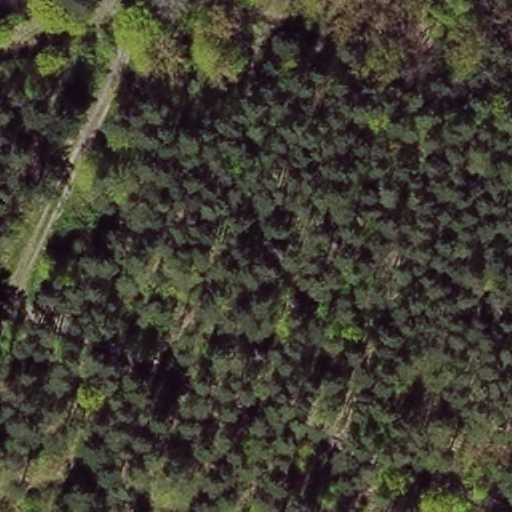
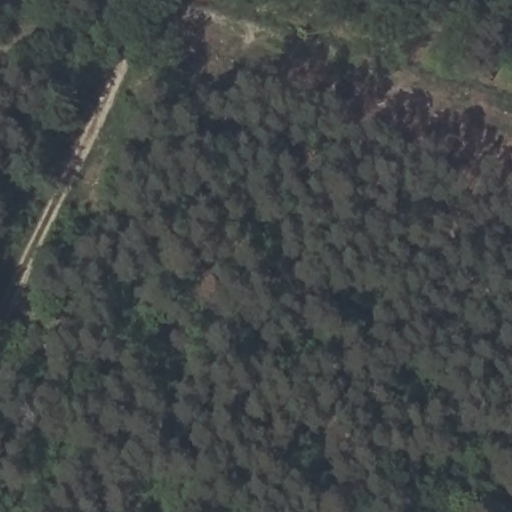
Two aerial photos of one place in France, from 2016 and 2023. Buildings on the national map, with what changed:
[]

